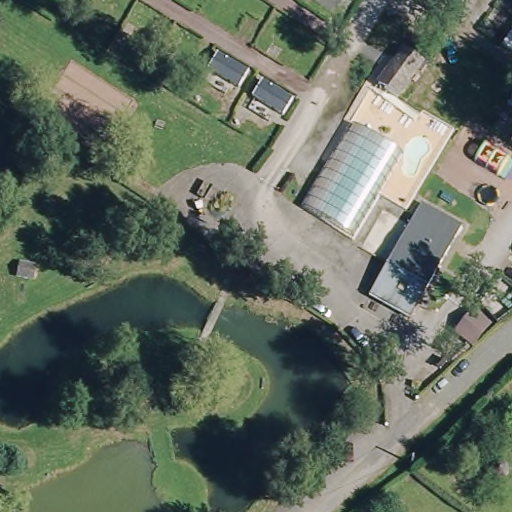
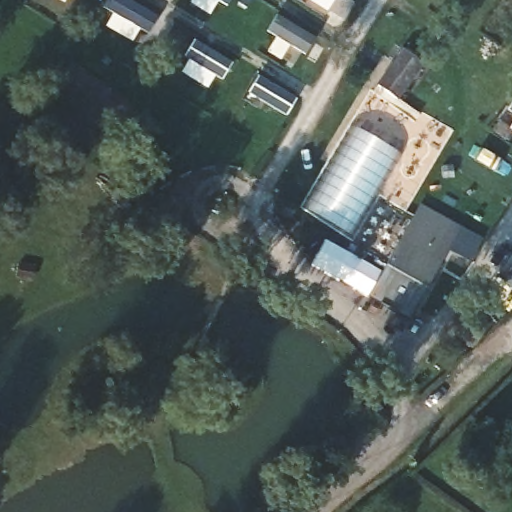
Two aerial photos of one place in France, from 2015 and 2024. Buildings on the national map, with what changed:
unchanged [(415,202),(458,226),(407,319),(365,296),(415,202)]

